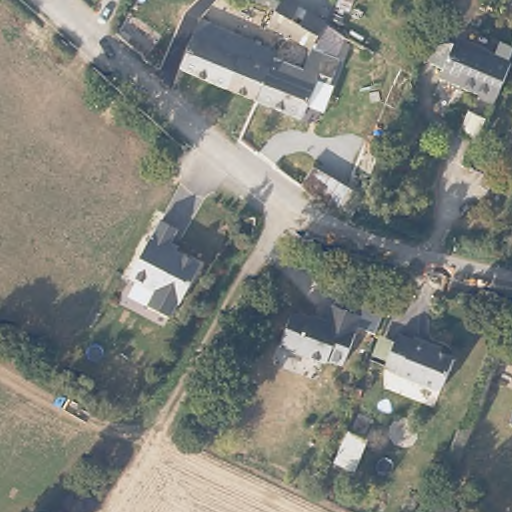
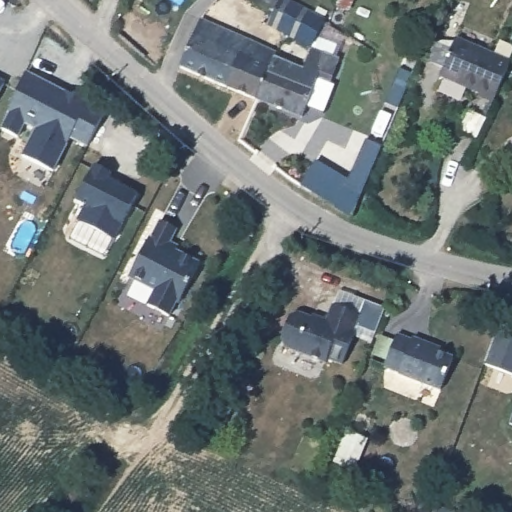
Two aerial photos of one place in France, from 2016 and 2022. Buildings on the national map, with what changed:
unchanged [(277,11),(253,1),(253,0),(291,0),(331,26),(315,47),(272,20),(277,11)]
unchanged [(258,98),(257,101),(182,65),(203,17),(224,25),(275,51),(273,54),(258,98)]
unchanged [(490,51),(490,53),(510,62),(492,105),(475,97),(475,94),(435,75),(453,36),(490,51)]
unchanged [(273,54),(302,65),(315,47),(341,56),(333,79),(319,74),(305,115),(258,98),(273,54)]
new [(78,137),(71,133),(54,167),(24,152),(37,125),(26,119),(19,133),(2,125),(26,69),(67,90),(105,109),(100,118),(89,142),(78,137)]
new [(0,88),(0,79),(4,81),(0,88)]
unchanged [(369,192),(353,220),(297,184),(312,159),(369,192)]
new [(115,240),(76,220),(85,206),(75,200),(95,164),(114,173),(111,179),(139,193),(115,240)]
unchanged [(254,215),(251,236),(250,236),(250,240),(249,243),(248,245),(246,247),(245,248),(241,248),(239,248),(236,247),(235,245),(234,243),(232,240),(232,237),(233,234),(231,234),(235,212),(254,215)]
unchanged [(179,230),(171,246),(201,263),(171,319),(144,306),(152,290),(129,278),(159,221),(179,230)]
unchanged [(340,369),(323,363),(322,367),(281,351),(278,343),(286,321),(293,317),(320,327),(321,325),(325,326),(330,309),(335,295),(360,304),(381,311),(372,338),(351,331),(350,335),(352,336),(340,369)]
new [(497,333),(512,331),(512,373),(486,363),(497,333)]
unchanged [(408,338),(409,335),(426,341),(437,345),(435,351),(449,356),(437,388),(396,373),(397,370),(383,365),(385,358),(371,353),(377,335),(391,340),(394,333),(408,338)]
unchanged [(503,423),(512,401),(512,426),(503,423)]

